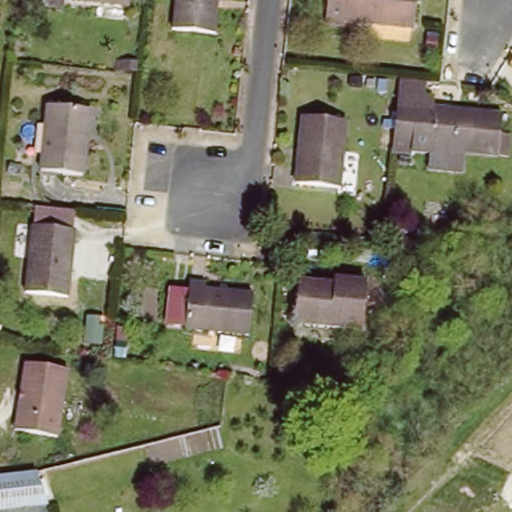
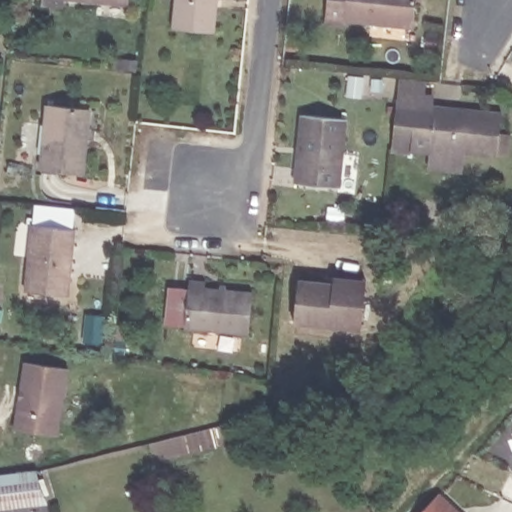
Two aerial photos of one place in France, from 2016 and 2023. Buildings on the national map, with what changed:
unchanged [(65,5),(42,4),(42,0),(65,0),(65,5)]
unchanged [(100,0),(129,0),(129,3),(100,0)]
unchanged [(221,39),(176,35),(179,0),(224,0),(221,39)]
unchanged [(420,23),(350,17),(349,24),(331,23),(332,0),(422,0),(420,23)]
unchanged [(436,160),(396,155),(406,77),(429,79),(429,95),(463,98),(462,110),(507,115),(503,156),(476,153),(473,175),(435,171),(436,160)]
unchanged [(91,104),(86,138),(95,139),(91,172),(45,167),(53,99),(91,104)]
unchanged [(350,121),(343,190),(298,186),(304,117),(350,121)]
unchanged [(78,231),(68,297),(24,290),(35,224),(78,231)]
unchanged [(206,275),(205,284),(250,289),(245,331),(182,324),(188,273),(206,275)]
unchanged [(361,279),(358,323),(292,319),(296,274),(361,279)]
unchanged [(67,369),(57,436),(16,430),(26,363),(67,369)]
unchanged [(51,504),(0,511),(0,477),(41,471),(51,504)]
new [(456,512),(423,512),(439,495),(456,512)]

